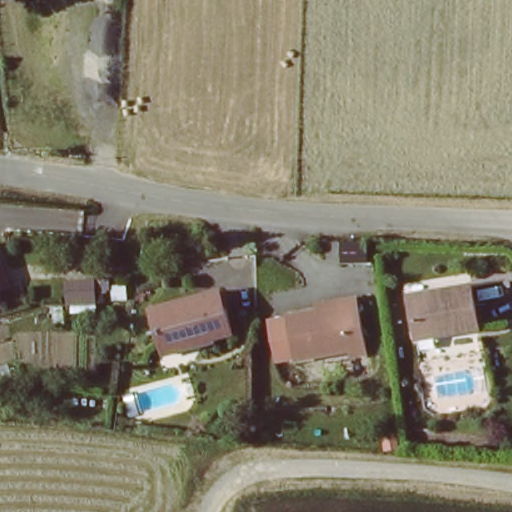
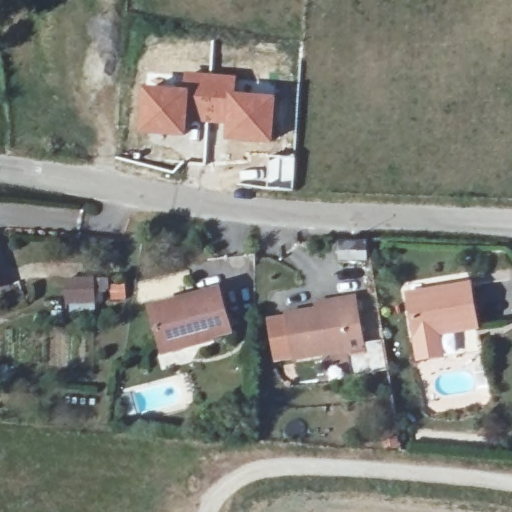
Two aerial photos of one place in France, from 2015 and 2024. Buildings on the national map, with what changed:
new [(184,72),(238,76),(237,93),(278,96),(274,145),(226,142),(227,125),(189,122),(189,89),(183,89),(184,72)]
new [(145,87),(183,89),(189,89),(189,122),(187,139),(141,134),(145,87)]
unchanged [(96,298),(69,300),(68,278),(95,277),(96,298)]
unchanged [(478,325),(417,335),(410,293),(471,283),(478,325)]
unchanged [(228,335),(194,345),(191,336),(158,346),(148,312),(216,293),(228,335)]
unchanged [(369,358),(346,361),(344,350),(295,357),(288,313),(359,301),(369,358)]
new [(419,358),(416,337),(442,333),(446,355),(419,358)]

